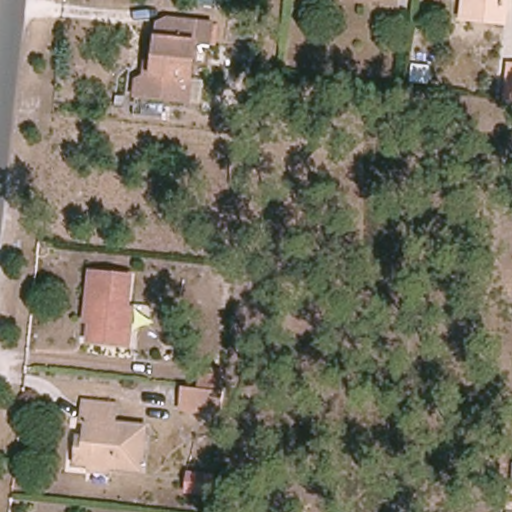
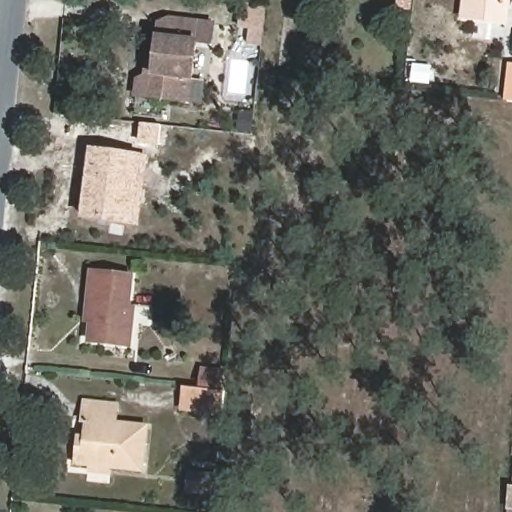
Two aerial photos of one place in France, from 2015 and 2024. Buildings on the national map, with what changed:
unchanged [(461,20),(463,0),(507,0),(504,25),(461,20)]
unchanged [(170,101),(130,97),(131,81),(142,74),(147,74),(148,64),(145,64),(150,23),(160,18),(204,24),(202,44),(189,44),(184,93),(184,103),(170,101)]
unchanged [(509,68),(512,68),(512,103),(506,103),(509,68)]
new [(88,148),(143,155),(133,226),(79,219),(88,148)]
unchanged [(131,279),(126,326),(131,326),(129,347),(89,343),(94,306),(88,305),(92,274),(131,279)]
unchanged [(196,371),(216,373),(215,388),(195,386),(196,371)]
unchanged [(216,412),(176,409),(179,388),(219,392),(216,412)]
unchanged [(115,406),(114,424),(146,428),(141,472),(75,464),(78,443),(85,444),(88,422),(83,421),(84,403),(115,406)]
unchanged [(504,509),(507,488),(512,488),(512,509),(504,509)]

